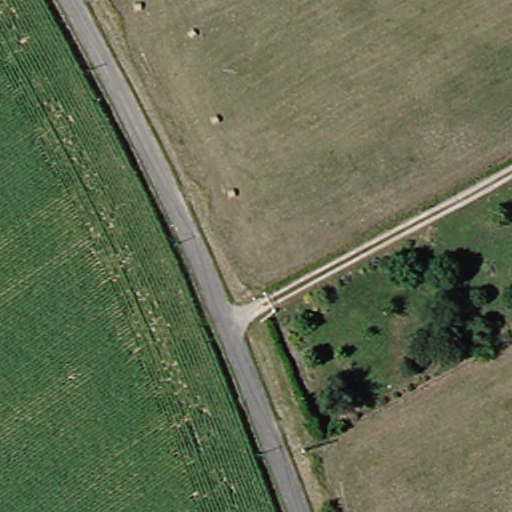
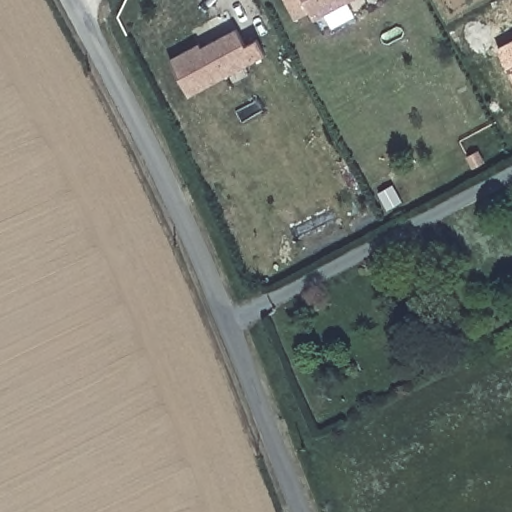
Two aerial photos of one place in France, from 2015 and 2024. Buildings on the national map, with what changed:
unchanged [(314,21),(303,0),(353,0),(314,21)]
new [(200,47),(235,29),(245,46),(257,40),(266,56),(188,96),(170,59),(198,44),(200,47)]
new [(512,40),(512,77),(497,47),(512,40)]

